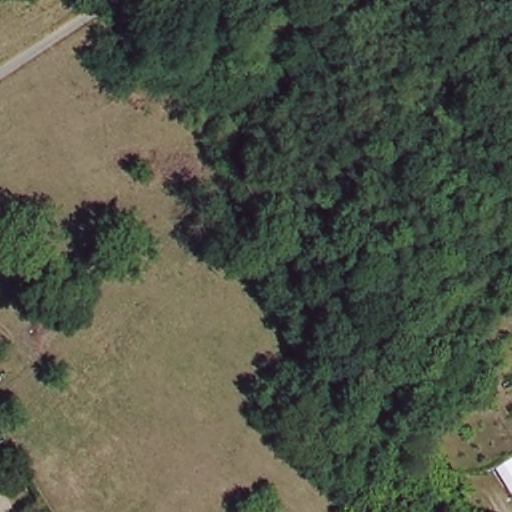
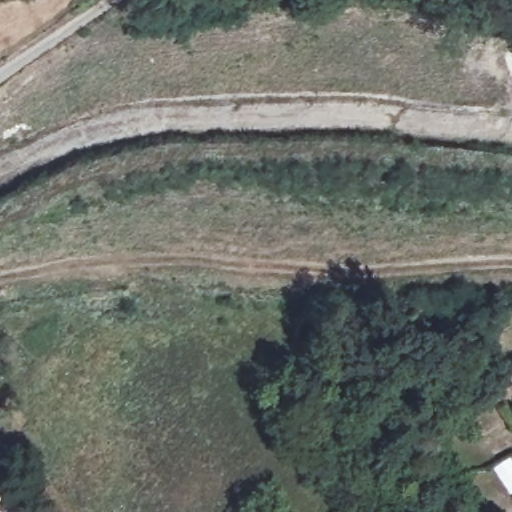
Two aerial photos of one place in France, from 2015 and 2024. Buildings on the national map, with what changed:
[]

